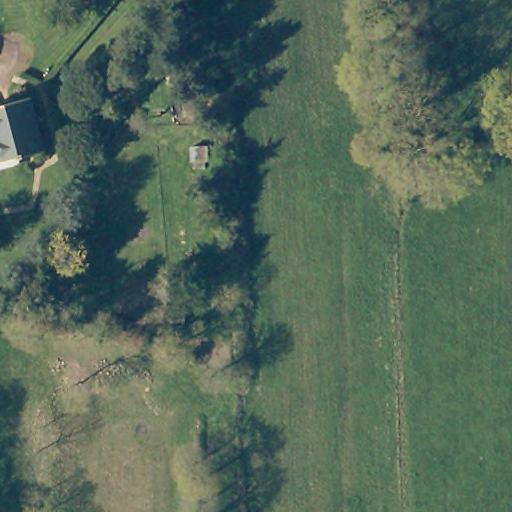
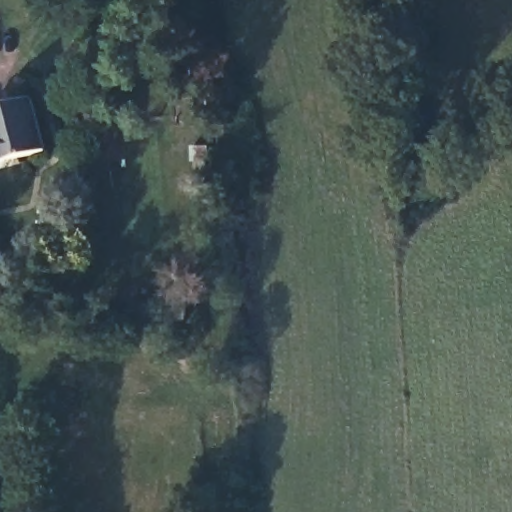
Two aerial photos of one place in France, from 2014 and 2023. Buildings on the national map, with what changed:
unchanged [(32,99),(44,152),(0,160),(0,157),(0,106),(32,99)]

